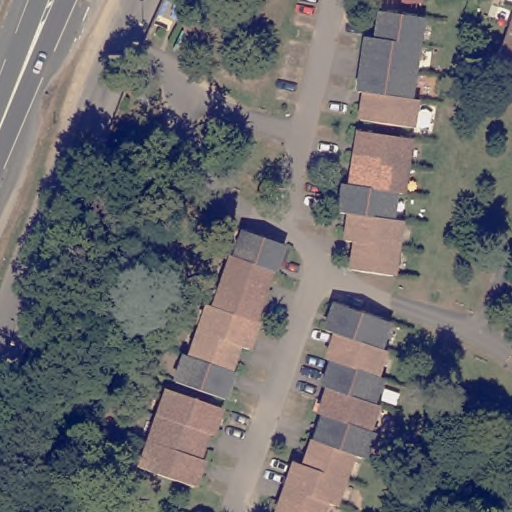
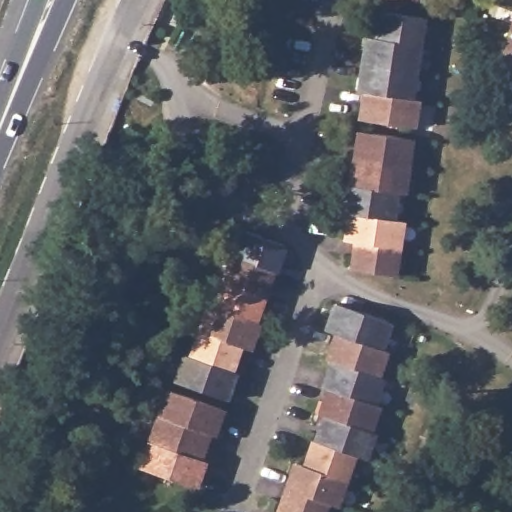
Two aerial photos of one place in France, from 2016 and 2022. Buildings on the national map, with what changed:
unchanged [(419,48),(415,75),(411,102),(418,102),(414,130),(362,122),(366,96),(360,95),(367,41),(377,42),(381,15),(423,21),(419,48)]
unchanged [(512,48),(512,62),(508,61),(512,48)]
unchanged [(408,169),(404,196),(398,195),(394,222),(404,224),(396,277),(354,271),(358,244),(349,242),(352,216),(343,214),(346,187),(353,188),(361,134),(412,142),(408,169)]
unchanged [(176,384),(184,358),(190,360),(198,334),(207,308),(213,310),(230,258),(234,260),(243,234),(284,246),(274,273),(270,272),(253,323),(257,325),(248,351),(239,347),(230,373),(234,375),(225,401),(176,384)]
unchanged [(383,351),(374,377),(379,378),(370,403),(375,405),(367,431),(371,432),(363,457),(353,455),(336,506),(326,502),(323,512),(279,512),(286,488),(295,463),(304,466),(315,441),(313,441),(323,417),(318,415),(327,390),(322,387),(330,362),(326,361),(334,335),(325,332),(333,306),(388,323),(378,350),(383,351)]
unchanged [(142,470),(151,443),(169,392),(222,410),(213,437),(209,435),(200,460),(205,462),(196,488),(142,470)]

